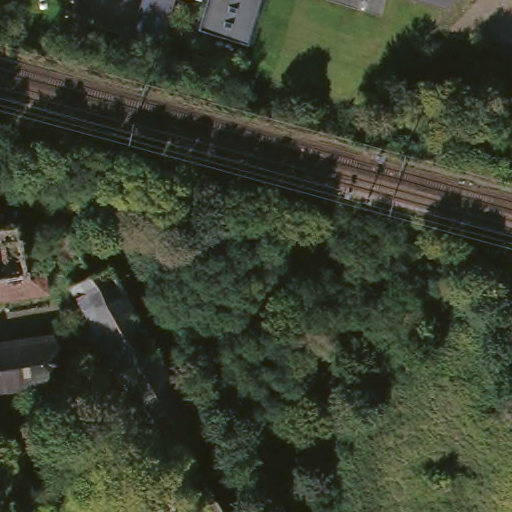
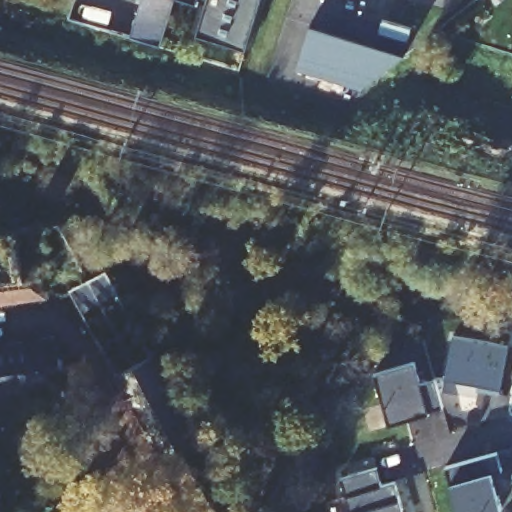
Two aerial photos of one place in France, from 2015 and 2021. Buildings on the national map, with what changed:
unchanged [(162,51),(132,41),(145,0),(179,0),(162,51)]
unchanged [(248,54),(199,38),(212,0),(266,0),(248,54)]
new [(405,54),(361,87),(297,70),(311,25),(405,54)]
unchanged [(50,229),(60,297),(0,305),(0,235),(50,229)]
unchanged [(94,276),(112,265),(208,439),(190,449),(192,452),(225,512),(197,512),(74,287),(94,276)]
unchanged [(54,335),(61,341),(67,376),(0,386),(0,344),(54,335)]
new [(449,336),(506,346),(497,394),(480,391),(481,386),(442,379),(449,336)]
new [(412,362),(418,383),(432,379),(440,407),(426,411),(426,414),(386,425),(371,373),(412,362)]
new [(379,485),(393,482),(401,512),(348,512),(339,477),(374,467),(379,485)]

